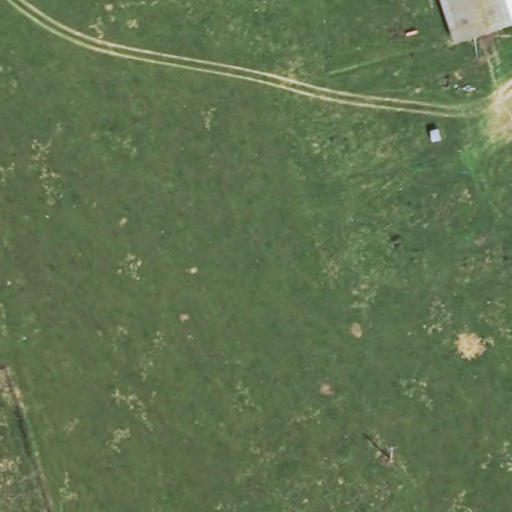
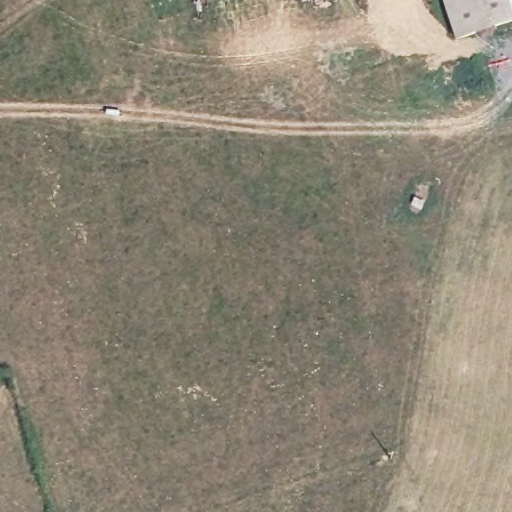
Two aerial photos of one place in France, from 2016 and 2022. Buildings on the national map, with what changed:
unchanged [(453,43),(440,0),(509,0),(512,10),(512,24),(453,43)]
unchanged [(509,0),(512,0),(512,10),(509,0)]

